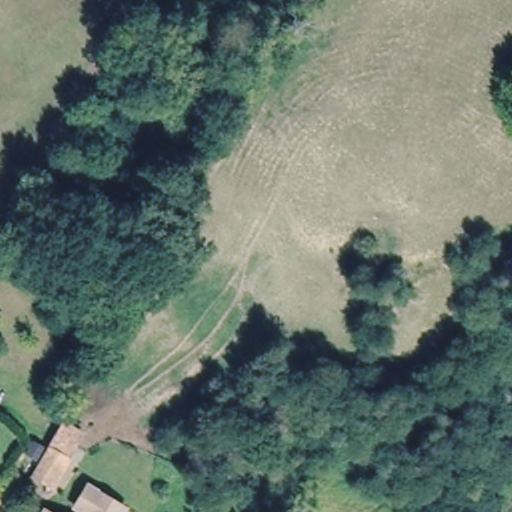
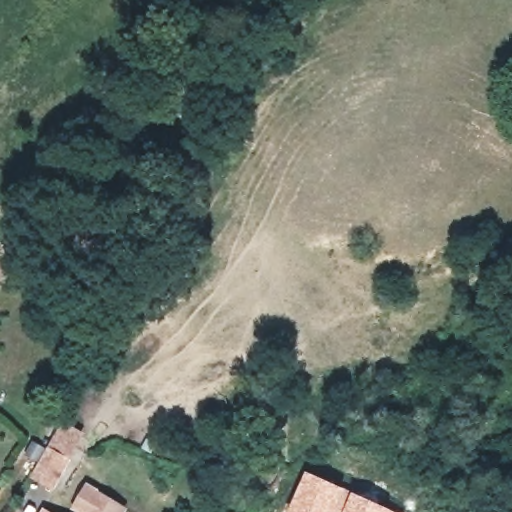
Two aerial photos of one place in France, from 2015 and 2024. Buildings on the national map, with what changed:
unchanged [(78,446),(62,470),(45,458),(60,433),(78,446)]
new [(306,470),(399,512),(287,512),(306,470)]
unchanged [(77,509),(91,489),(125,512),(83,512),(77,509)]

